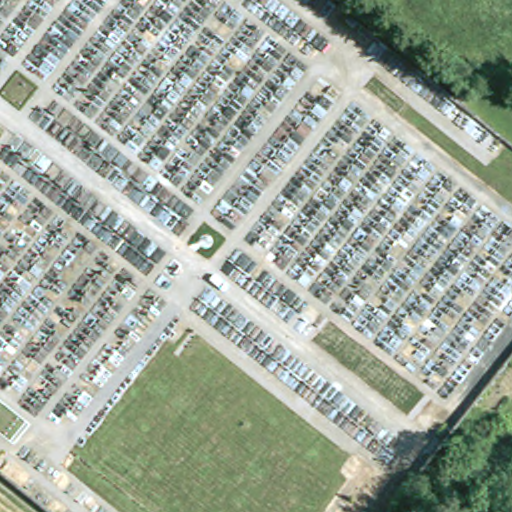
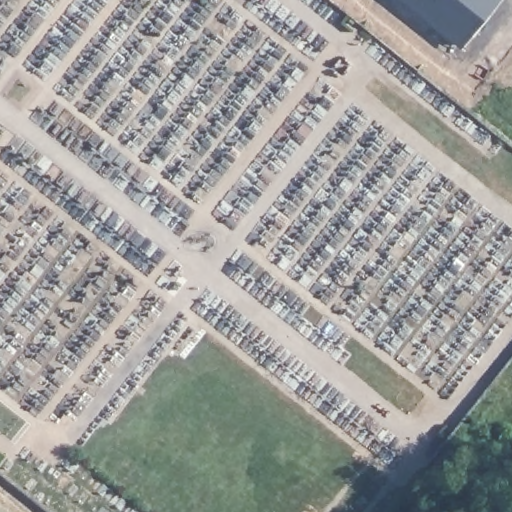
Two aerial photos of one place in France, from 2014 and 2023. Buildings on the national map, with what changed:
new [(407,0),(494,0),(460,42),(407,0)]

